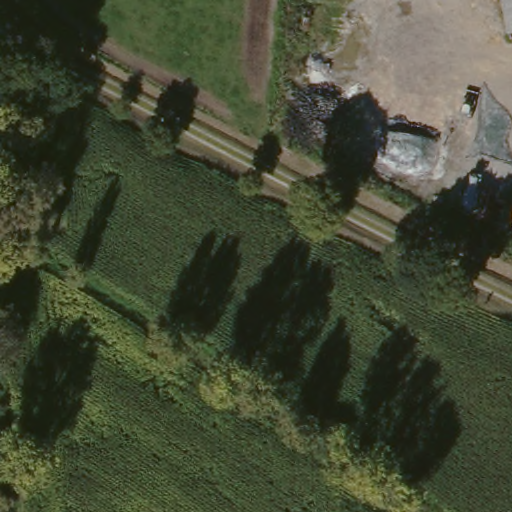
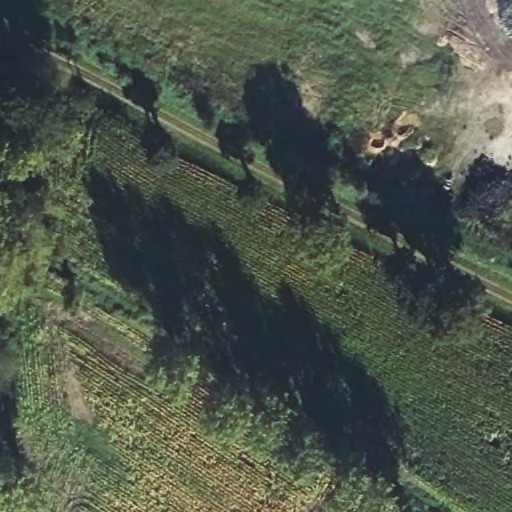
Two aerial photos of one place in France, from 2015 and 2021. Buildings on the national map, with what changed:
unchanged [(502,0),(512,0),(512,39),(508,40),(502,0)]

